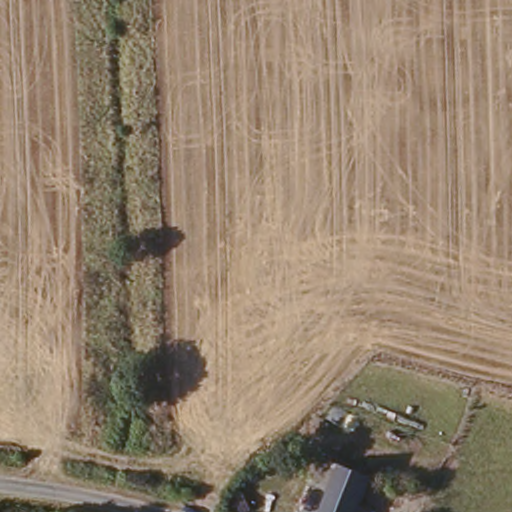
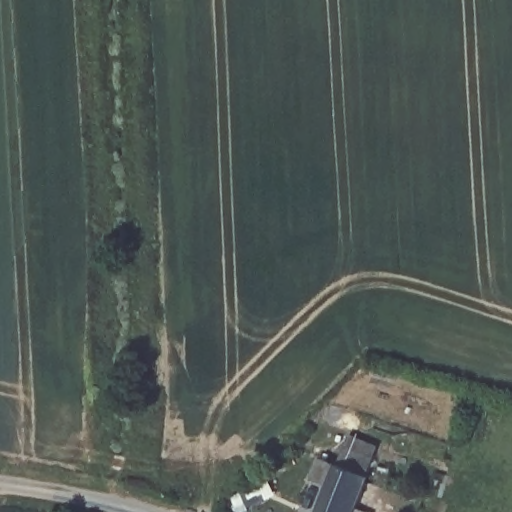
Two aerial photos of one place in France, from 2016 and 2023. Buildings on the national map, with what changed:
unchanged [(318,512),(337,462),(372,476),(356,512),(318,512)]

